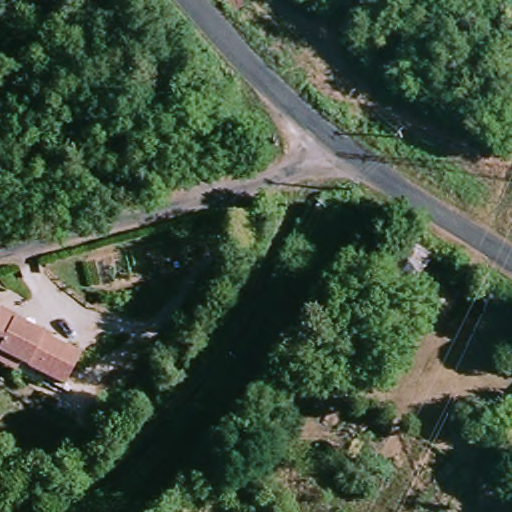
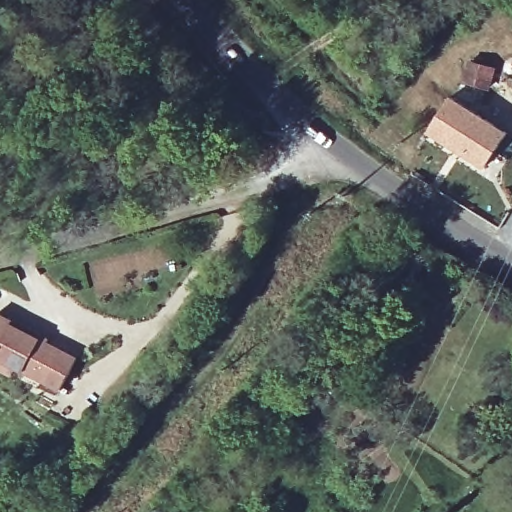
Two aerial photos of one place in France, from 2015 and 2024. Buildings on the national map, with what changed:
unchanged [(512,67),(512,89),(488,85),(495,62),(512,67)]
new [(506,134),(484,168),(428,132),(451,96),(506,134)]
unchanged [(0,325),(10,305),(31,316),(27,323),(91,358),(77,385),(29,360),(24,370),(0,357),(0,325)]

